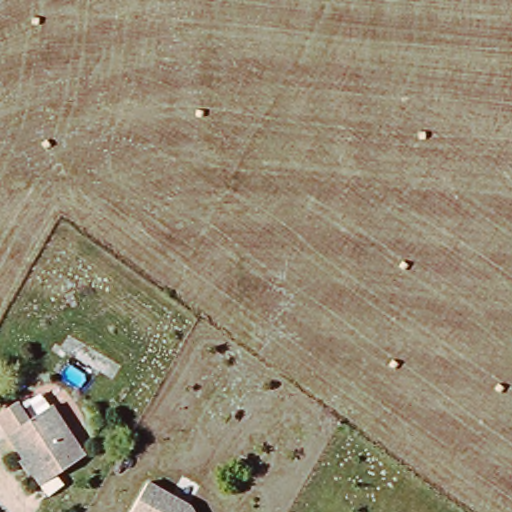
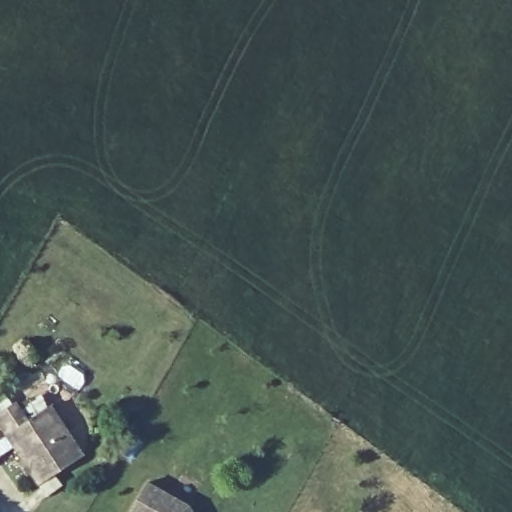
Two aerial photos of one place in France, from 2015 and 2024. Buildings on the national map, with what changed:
unchanged [(29,457),(23,447),(19,449),(0,422),(0,416),(18,404),(29,420),(51,405),(85,456),(43,485),(33,470),(29,473),(21,462),(29,457)]
unchanged [(148,486),(190,511),(191,512),(133,512),(148,486)]

